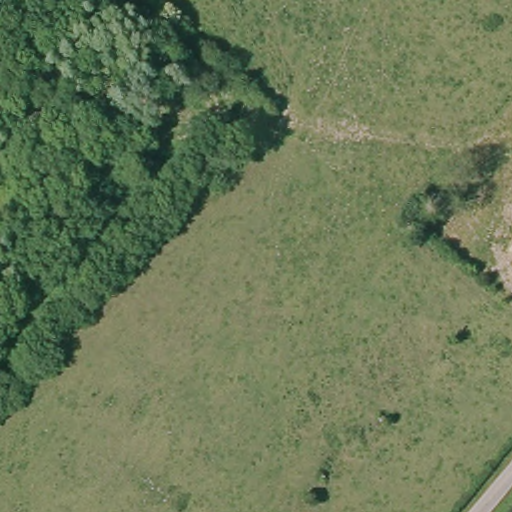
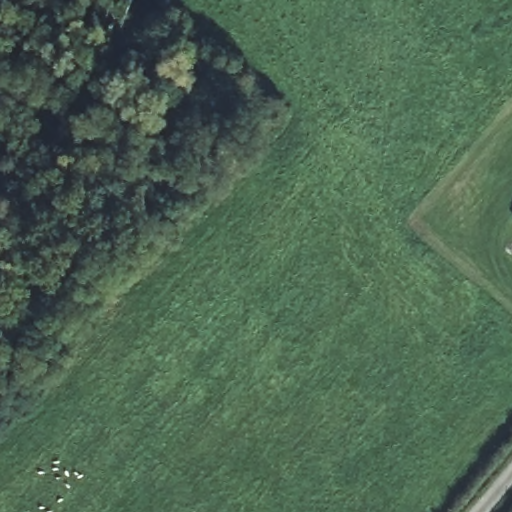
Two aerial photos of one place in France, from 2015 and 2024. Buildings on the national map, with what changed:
[]

